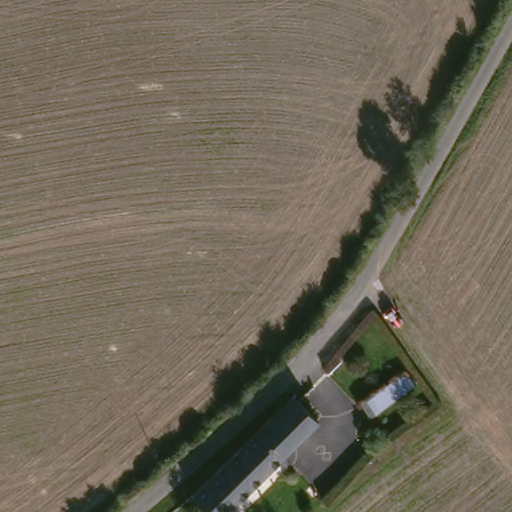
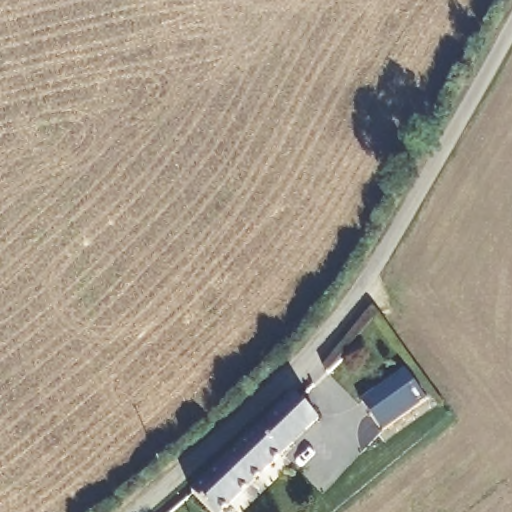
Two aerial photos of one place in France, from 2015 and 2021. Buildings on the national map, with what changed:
unchanged [(407,361),(418,376),(373,412),(362,397),(407,361)]
unchanged [(317,418),(282,452),(259,428),(292,395),(317,418)]
unchanged [(223,512),(213,512),(193,492),(259,428),(282,452),(223,512)]

